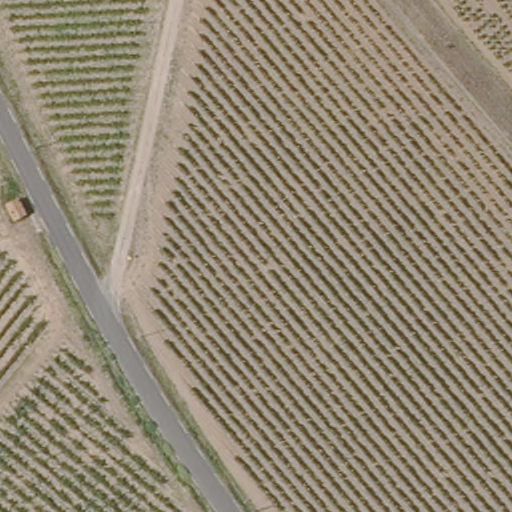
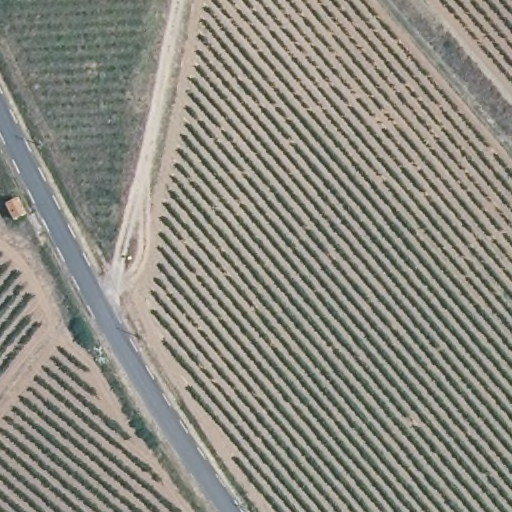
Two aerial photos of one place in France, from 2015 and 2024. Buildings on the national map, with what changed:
unchanged [(38,217),(18,226),(9,206),(25,196),(38,217)]

